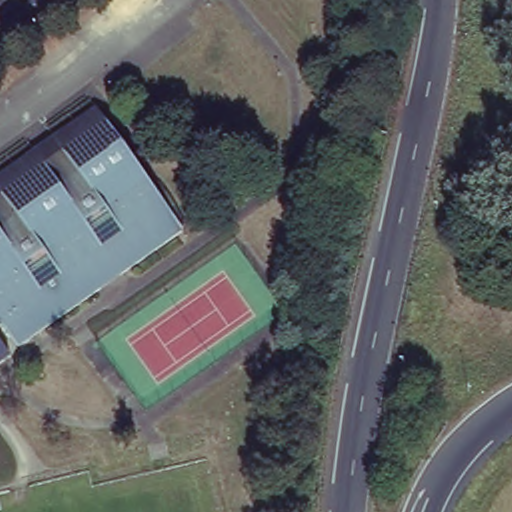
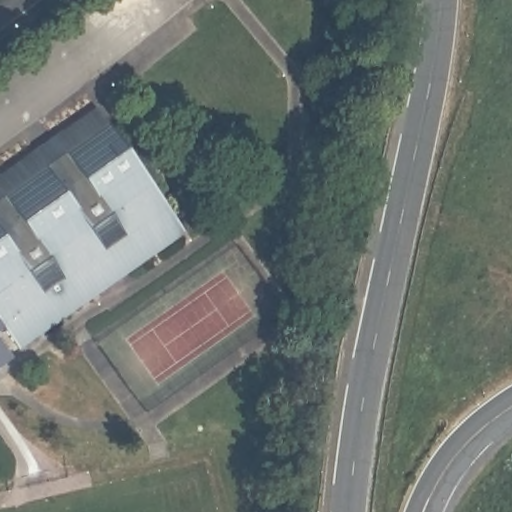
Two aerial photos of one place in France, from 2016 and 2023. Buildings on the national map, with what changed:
unchanged [(183,231),(17,348),(1,326),(0,326),(0,177),(96,109),(183,231)]
unchanged [(0,363),(0,343),(9,357),(0,363)]

